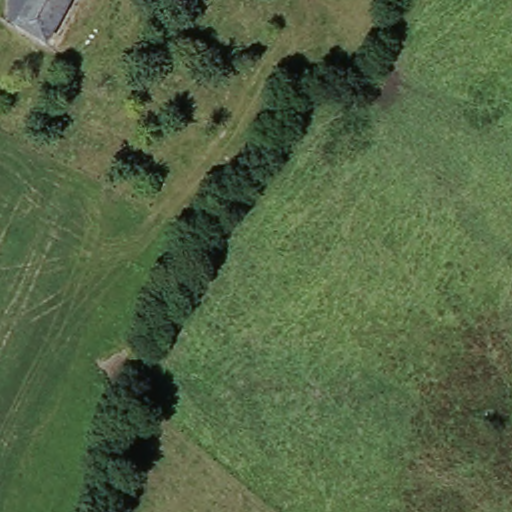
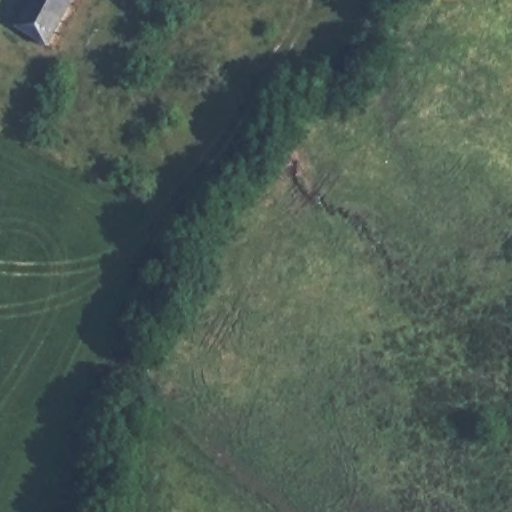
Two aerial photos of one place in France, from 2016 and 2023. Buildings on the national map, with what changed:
unchanged [(74,0),(49,46),(19,29),(35,0),(74,0)]

